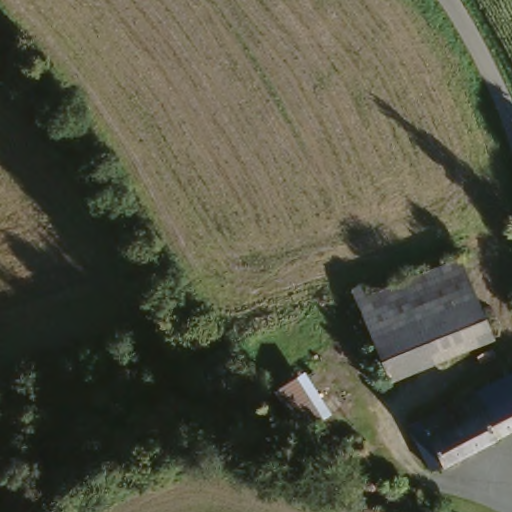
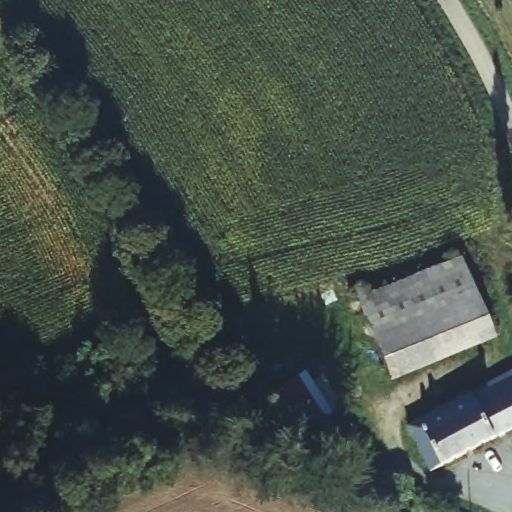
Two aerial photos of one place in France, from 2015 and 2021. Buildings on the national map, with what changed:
unchanged [(386,382),(367,337),(347,289),(357,285),(362,296),(452,258),(470,297),(487,339),(386,382)]
unchanged [(431,466),(408,423),(512,370),(512,424),(431,466)]
unchanged [(328,412),(300,431),(273,391),(302,372),(328,412)]

